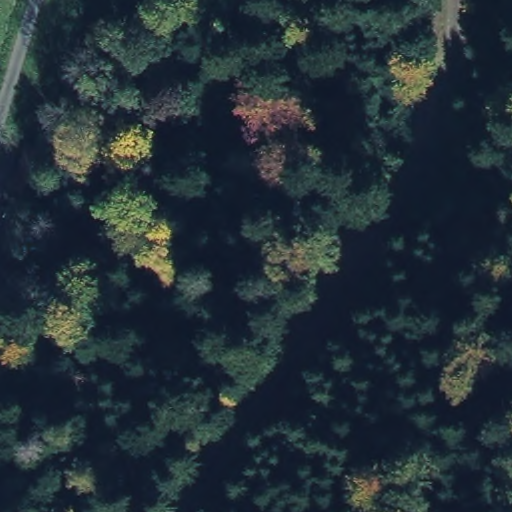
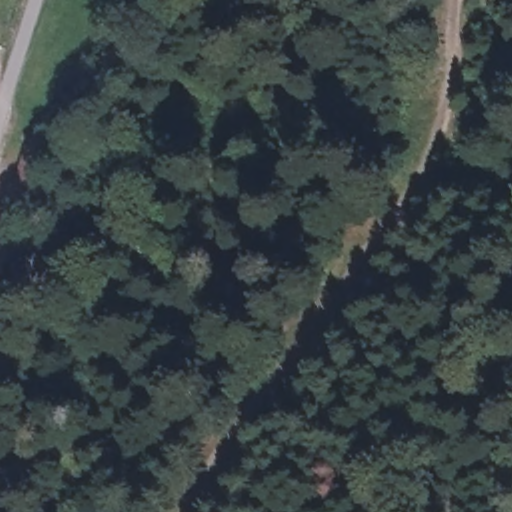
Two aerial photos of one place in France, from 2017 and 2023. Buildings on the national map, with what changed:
unchanged [(6,188),(24,145),(50,155),(34,197),(6,188)]

